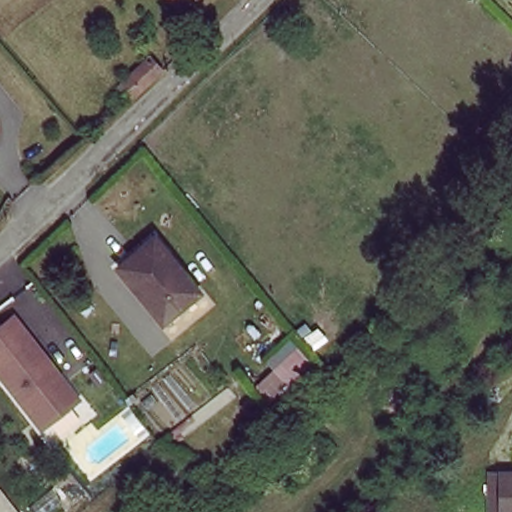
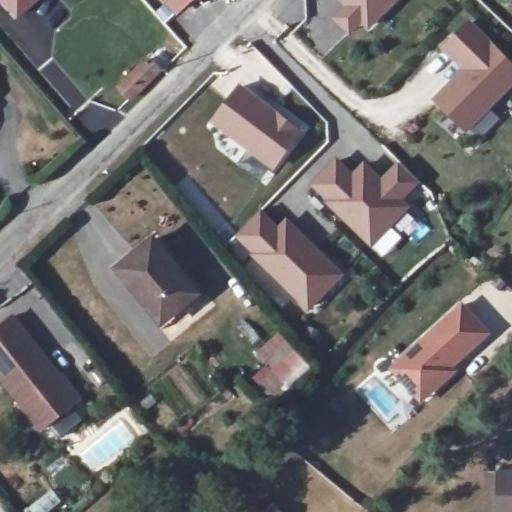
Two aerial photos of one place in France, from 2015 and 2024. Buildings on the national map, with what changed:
new [(17,21),(0,2),(0,0),(40,0),(17,21)]
unchanged [(184,8),(177,0),(193,0),(184,8)]
new [(350,36),(332,18),(343,6),(337,0),(398,0),(369,31),(362,23),(350,36)]
new [(470,22),(512,64),(512,83),(467,128),(437,98),(466,68),(445,47),(470,22)]
unchanged [(148,85),(133,99),(122,86),(152,59),(163,71),(148,85)]
new [(304,131),(274,170),(209,123),(240,82),(304,131)]
new [(352,172),(363,160),(383,177),(399,160),(419,182),(404,201),(410,207),(370,250),(309,184),(337,157),(352,172)]
new [(345,273),(309,312),(234,236),(263,209),(278,226),(287,218),(345,273)]
unchanged [(170,323),(120,266),(124,262),(159,232),(205,287),(187,302),(189,306),(170,323)]
new [(462,298),(490,333),(421,405),(388,369),(462,298)]
unchanged [(0,372),(0,318),(11,309),(57,368),(63,376),(76,393),(43,420),(39,422),(12,388),(0,372)]
new [(264,365),(254,353),(279,331),(312,368),(273,402),(251,378),(264,365)]
unchanged [(510,472),(512,471),(512,512),(506,512),(507,472),(510,472)]
new [(264,512),(239,512),(252,500),(264,512)]

